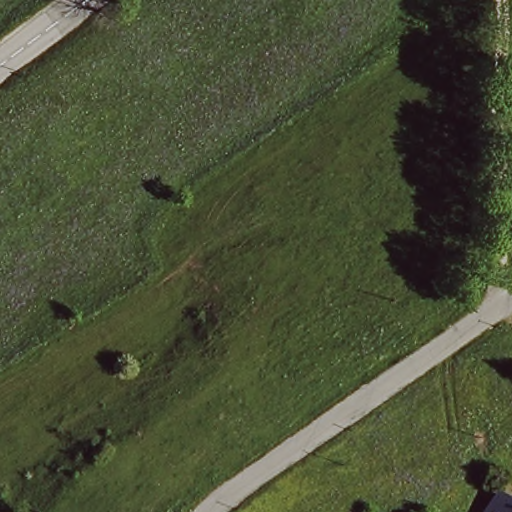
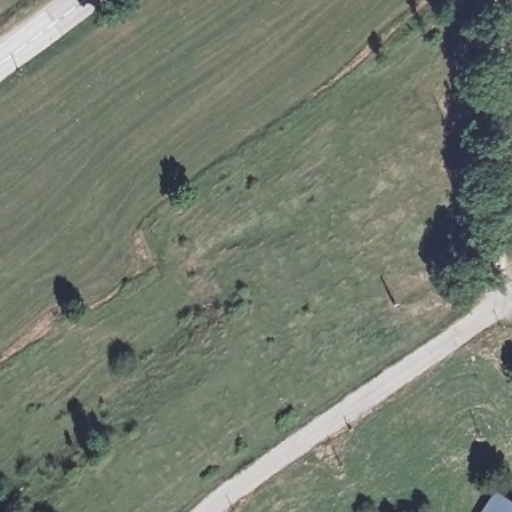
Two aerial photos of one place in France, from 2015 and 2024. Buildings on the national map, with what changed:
unchanged [(480,512),(479,511),(503,486),(512,495),(512,512),(480,512)]

